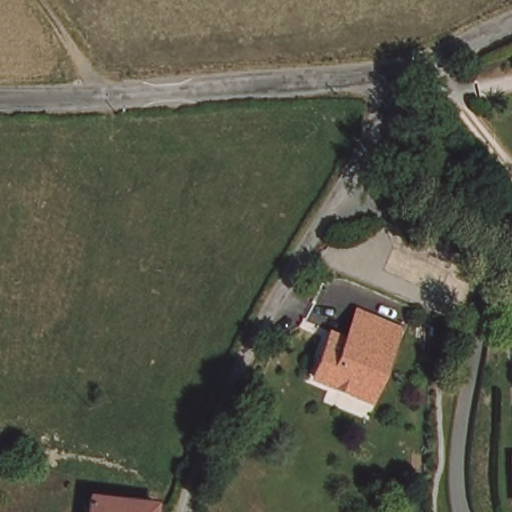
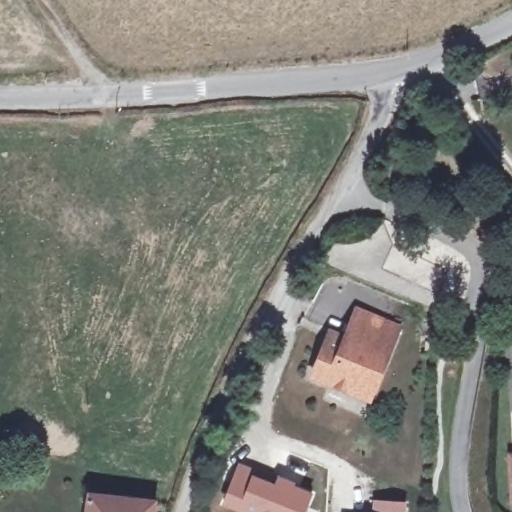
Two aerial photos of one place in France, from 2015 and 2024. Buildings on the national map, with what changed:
unchanged [(355,397),(315,381),(330,344),(347,350),(361,316),(402,333),(375,395),(372,405),(355,397)]
new [(238,461),(253,467),(252,471),(274,481),(277,474),(315,492),(306,512),(234,512),(221,506),(238,461)]
unchanged [(92,495),(160,505),(158,512),(89,512),(92,495)]
new [(372,499),(407,501),(406,512),(371,512),(372,499)]

